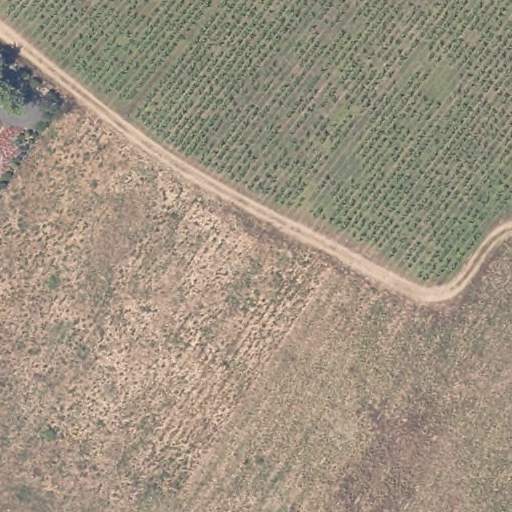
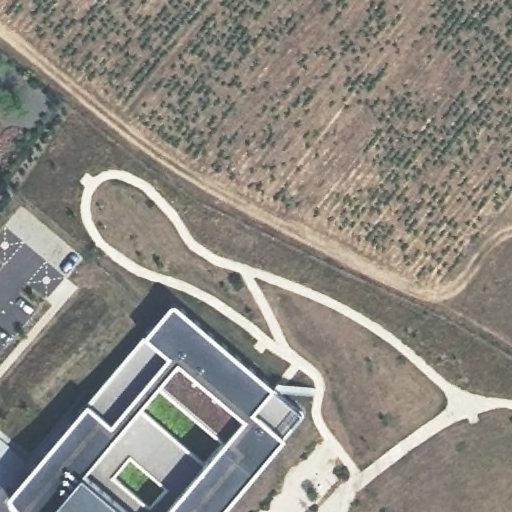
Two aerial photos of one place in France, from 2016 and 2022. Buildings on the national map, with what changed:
new [(9,496),(8,493),(11,488),(87,400),(143,334),(169,302),(170,302),(172,301),(176,302),(273,386),(252,409),(286,438),(223,512),(20,512),(11,500),(9,496)]

